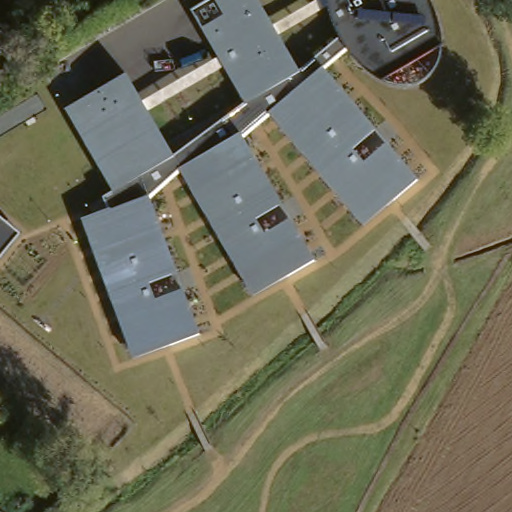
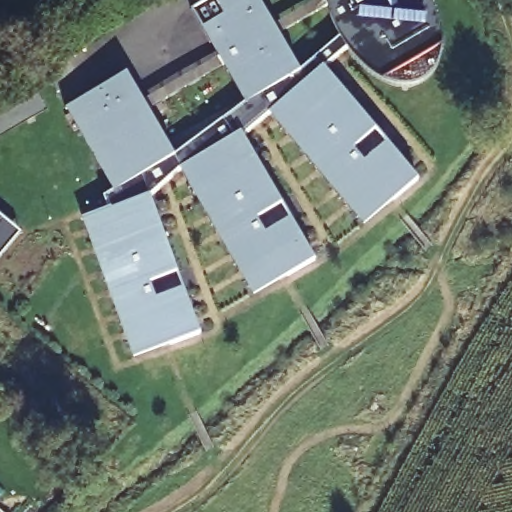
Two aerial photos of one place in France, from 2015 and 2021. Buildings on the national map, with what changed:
unchanged [(107,208),(101,198),(113,190),(66,108),(128,72),(174,155),(246,102),(191,9),(207,0),(260,0),(299,70),(339,37),(332,22),(326,0),(431,0),(437,13),(441,33),(442,45),(382,80),(367,71),(354,58),(347,48),(324,69),(376,130),(353,149),(363,161),(388,143),(418,180),(363,227),(268,113),(244,134),(283,203),(257,219),(264,232),(291,218),(316,260),(251,297),(178,170),(151,197),(178,272),(151,281),(156,298),(185,289),(201,334),(132,358),(82,218),(107,208)]
unchanged [(0,257),(0,217),(21,233),(0,257)]

